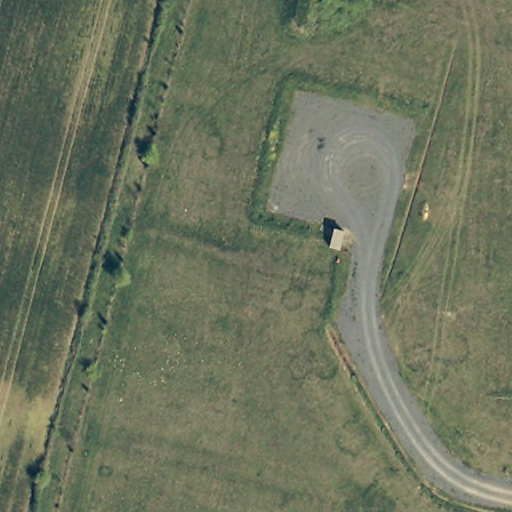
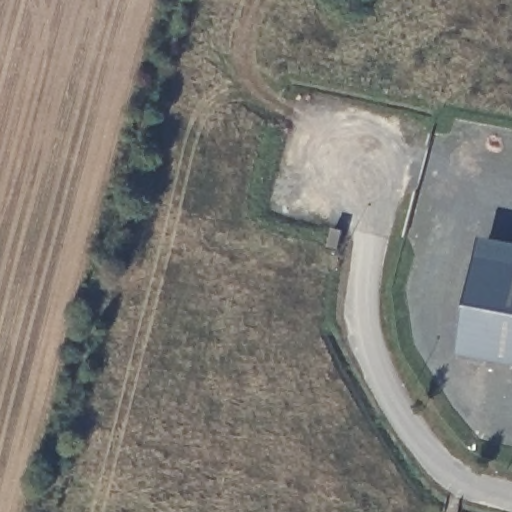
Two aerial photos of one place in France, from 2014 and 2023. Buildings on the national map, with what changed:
unchanged [(336,234),(332,251),(322,249),(327,231),(336,234)]
new [(483,236),(512,242),(512,364),(462,355),(483,236)]

